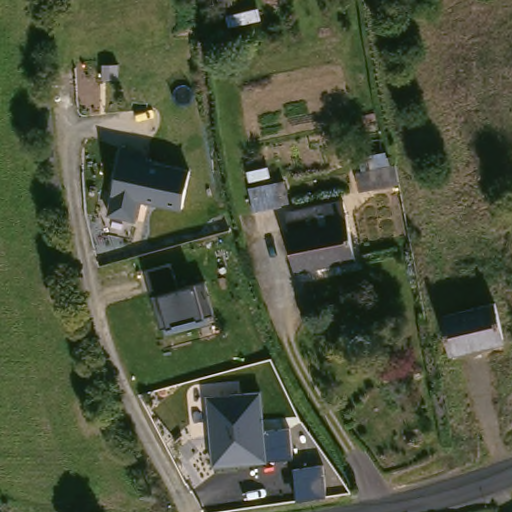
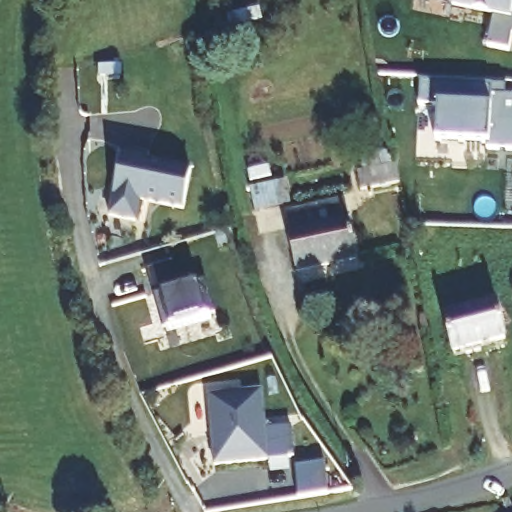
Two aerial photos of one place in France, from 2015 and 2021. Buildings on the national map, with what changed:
new [(510,52),(488,47),(495,16),(455,7),(421,0),(512,0),(512,41),(510,52)]
new [(502,89),(512,90),(512,152),(499,151),(499,146),(447,144),(448,109),(430,108),(431,86),(502,89)]
unchanged [(179,214),(113,197),(122,152),(195,170),(179,214)]
unchanged [(412,183),(374,192),(369,174),(408,164),(412,183)]
unchanged [(255,192),(278,187),(281,210),(253,216),(255,192)]
unchanged [(350,203),(362,262),(303,274),(302,273),(290,216),(350,203)]
unchanged [(176,264),(181,284),(198,282),(205,312),(205,322),(165,332),(150,268),(176,264)]
unchanged [(448,318),(503,307),(512,343),(457,356),(448,318)]
unchanged [(205,393),(265,391),(268,429),(293,428),(295,455),(266,458),(211,462),(205,393)]
unchanged [(331,461),(334,492),(305,497),(301,465),(331,461)]

